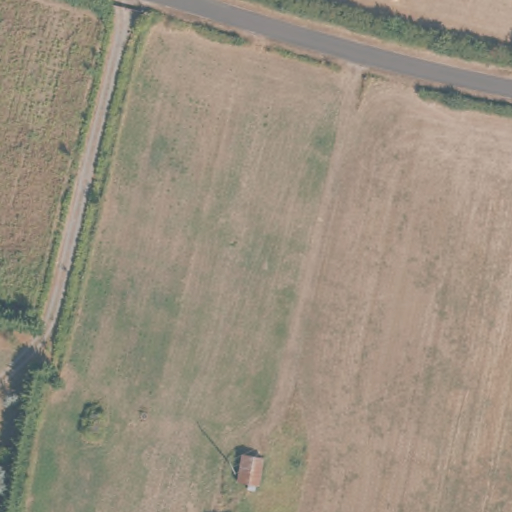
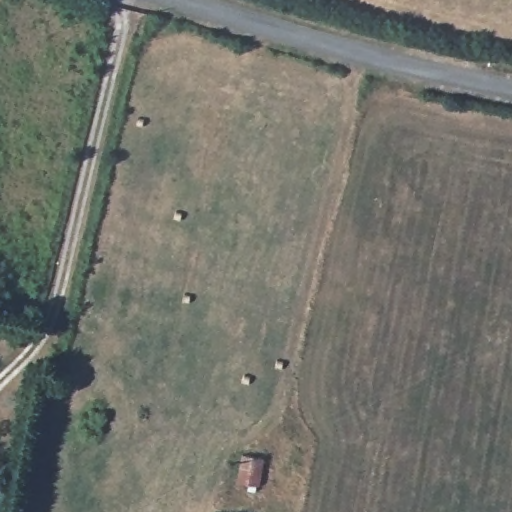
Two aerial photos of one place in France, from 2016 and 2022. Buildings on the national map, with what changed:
unchanged [(262,457),(260,487),(237,486),(240,455),(262,457)]

